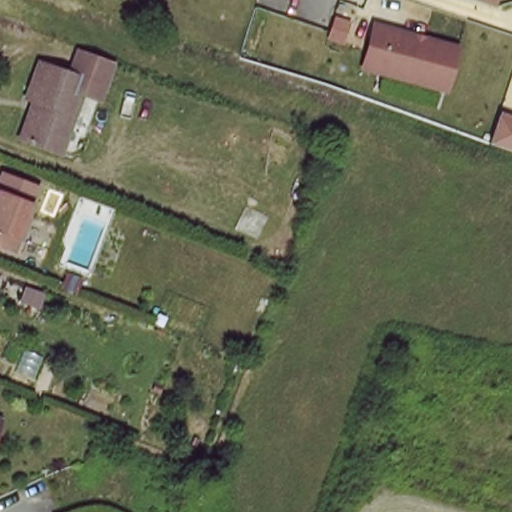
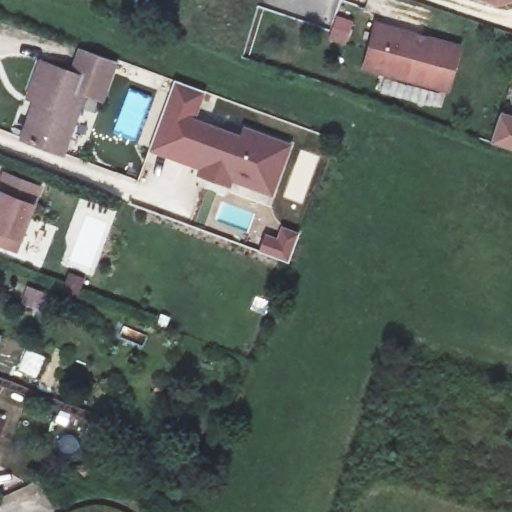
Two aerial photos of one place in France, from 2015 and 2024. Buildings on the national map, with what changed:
unchanged [(449,93),(363,69),(375,23),(462,45),(449,93)]
unchanged [(40,96),(33,94),(46,60),(77,72),(87,48),(120,61),(107,98),(92,92),(86,104),(74,138),(70,151),(35,138),(25,134),(40,96)]
new [(197,118),(240,134),(244,125),(293,143),(272,195),(232,182),(230,187),(196,174),(198,168),(150,150),(176,81),(205,91),(197,118)]
unchanged [(512,149),(491,143),(503,113),(512,115),(512,149)]
unchanged [(0,252),(0,201),(3,202),(15,169),(47,180),(24,245),(12,240),(6,254),(0,252)]

